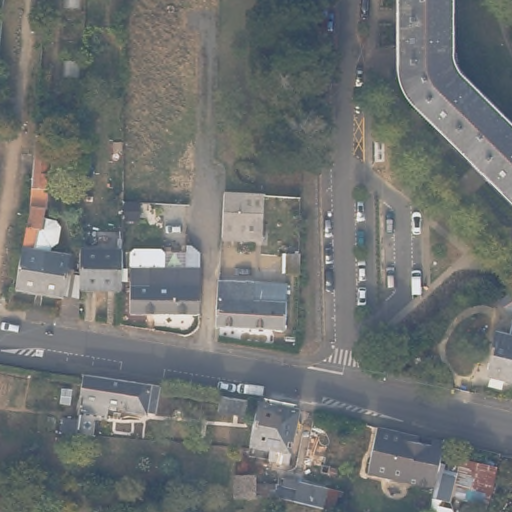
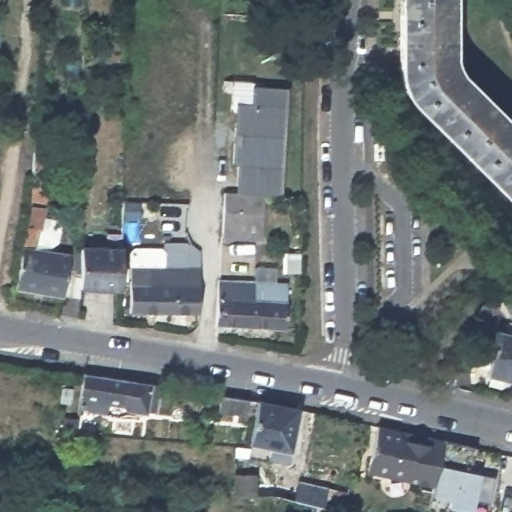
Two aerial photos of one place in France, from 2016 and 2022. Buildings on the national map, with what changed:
unchanged [(456,52),(457,58),(457,63),(459,67),(462,70),(466,75),(512,122),(512,194),(419,102),(413,91),(408,84),(404,65),(404,0),(456,0),(456,52)]
new [(262,193),(262,191),(236,188),(237,164),(232,164),(234,102),(250,103),(251,85),(288,87),(282,195),(262,193)]
unchanged [(61,225),(58,242),(52,247),(51,250),(66,252),(61,286),(81,290),(81,316),(57,312),(60,294),(17,286),(22,247),(22,246),(28,205),(29,134),(44,134),(43,206),(42,217),(55,219),(61,225)]
demolished [(157,158),(157,193),(127,193),(127,158),(157,158)]
unchanged [(260,237),(221,234),(223,187),(262,191),(260,237)]
unchanged [(119,246),(119,286),(81,285),(81,245),(119,246)]
unchanged [(183,253),(195,253),(195,263),(196,263),(196,310),(127,310),(127,263),(127,249),(131,245),(157,246),(161,249),(161,263),(183,263),(183,253)]
unchanged [(257,284),(258,285),(291,288),(288,332),(217,326),(220,281),(257,284)]
unchanged [(512,291),(512,310),(504,295),(512,291)]
unchanged [(506,332),(512,316),(512,380),(486,374),(493,329),(506,332)]
unchanged [(158,384),(154,411),(146,410),(145,412),(123,409),(120,405),(107,402),(105,413),(75,408),(80,372),(158,384)]
unchanged [(243,413),(217,410),(220,395),(246,399),(243,413)]
unchanged [(290,470),(272,467),(274,455),(252,451),(261,406),(302,414),(290,470)]
unchanged [(384,428),(396,431),(402,440),(394,479),(366,473),(376,426),(384,428)]
unchanged [(441,448),(435,476),(432,487),(394,479),(402,440),(441,448)]
demolished [(492,470),(482,503),(448,493),(458,460),(492,470)]
unchanged [(274,497),(262,497),(230,498),(230,479),(252,478),(252,486),(279,486),(282,477),(335,489),(330,510),(274,497)]

